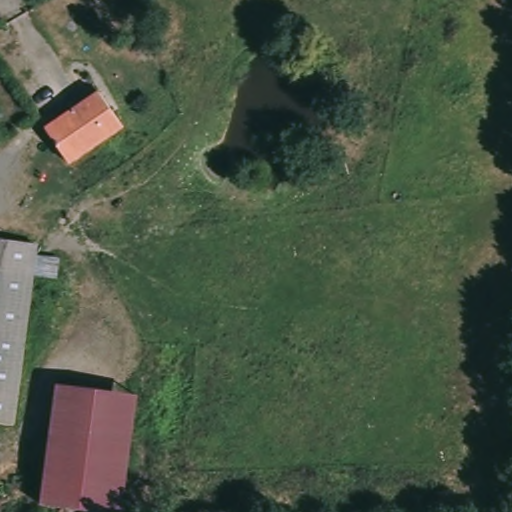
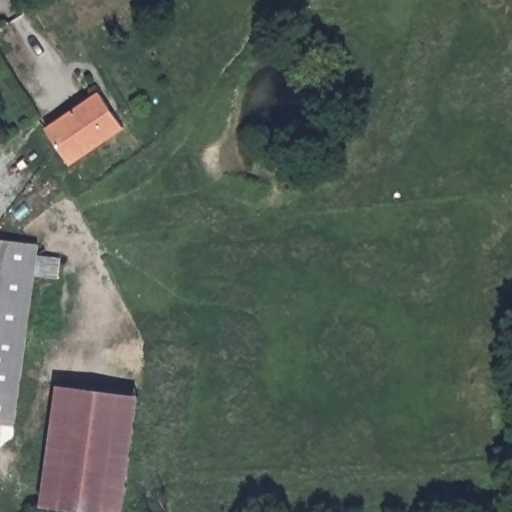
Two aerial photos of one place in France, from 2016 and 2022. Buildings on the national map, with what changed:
unchanged [(49,132),(102,95),(125,127),(70,165),(49,132)]
unchanged [(12,426),(0,424),(0,243),(35,247),(12,426)]
unchanged [(140,402),(127,512),(71,512),(45,508),(57,392),(140,402)]

